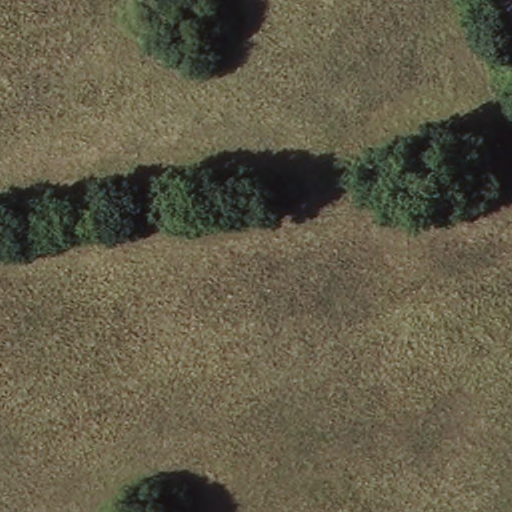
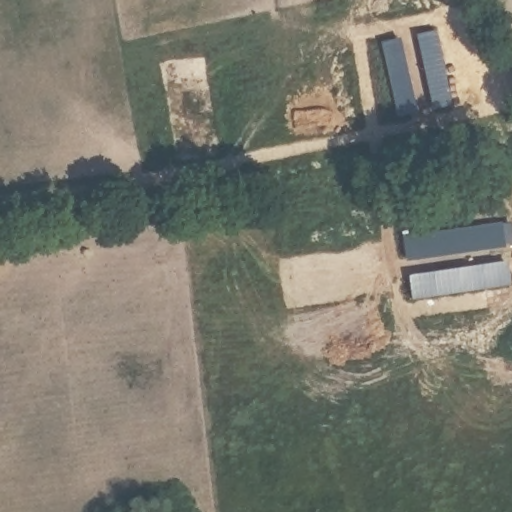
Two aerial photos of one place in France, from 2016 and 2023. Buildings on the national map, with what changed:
new [(450,134),(426,138),(412,38),(435,35),(450,134)]
new [(416,141),(393,145),(378,45),(401,42),(416,141)]
new [(501,224),(505,247),(404,260),(402,237),(501,224)]
new [(505,260),(508,283),(407,296),(405,273),(505,260)]

